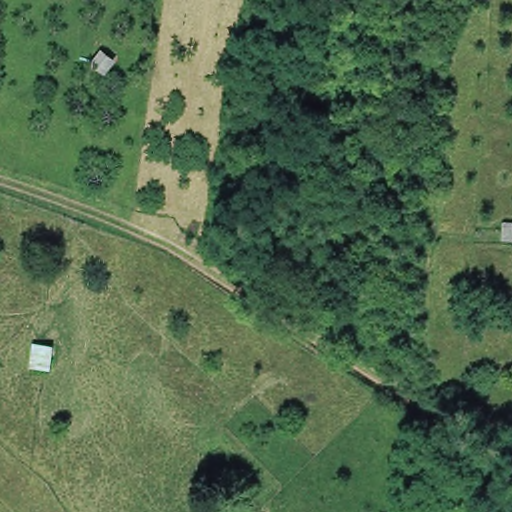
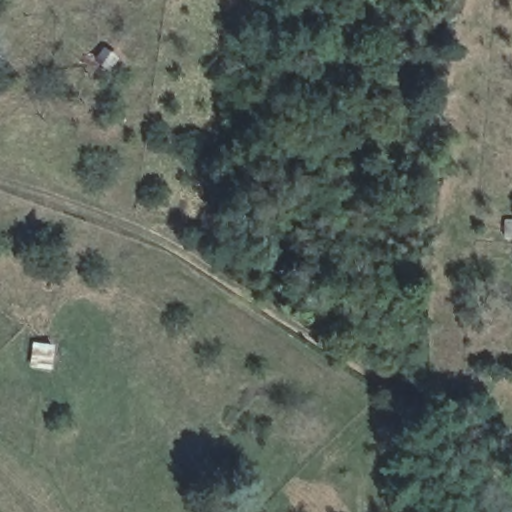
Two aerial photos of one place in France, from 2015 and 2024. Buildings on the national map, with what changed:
unchanged [(113,82),(92,68),(105,43),(122,61),(113,82)]
unchanged [(56,371),(28,370),(30,339),(60,346),(56,371)]

